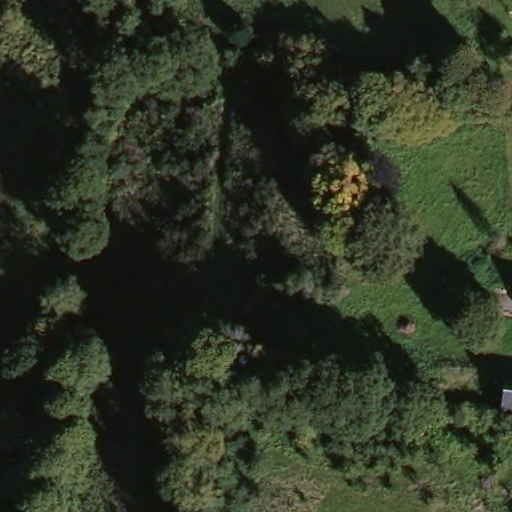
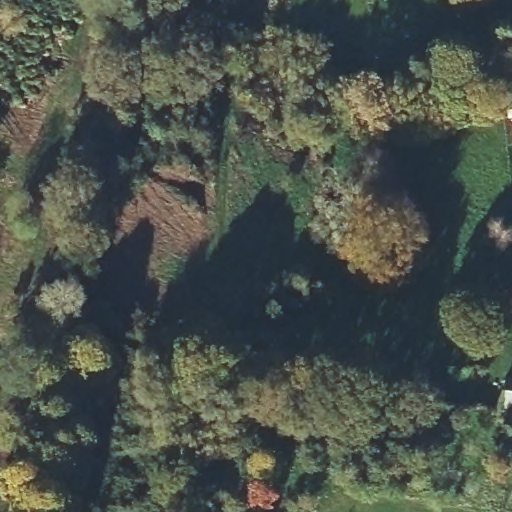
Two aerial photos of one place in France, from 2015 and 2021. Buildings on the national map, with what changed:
unchanged [(506,295),(512,295),(512,330),(502,328),(506,295)]
unchanged [(504,385),(512,386),(512,417),(499,415),(504,385)]
unchanged [(446,400),(464,400),(463,420),(426,420),(426,400),(446,400)]

